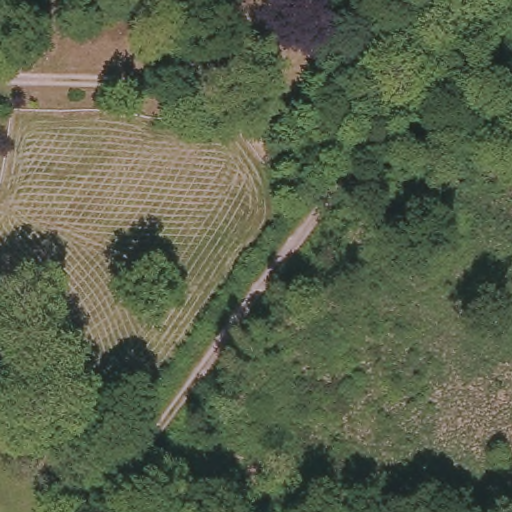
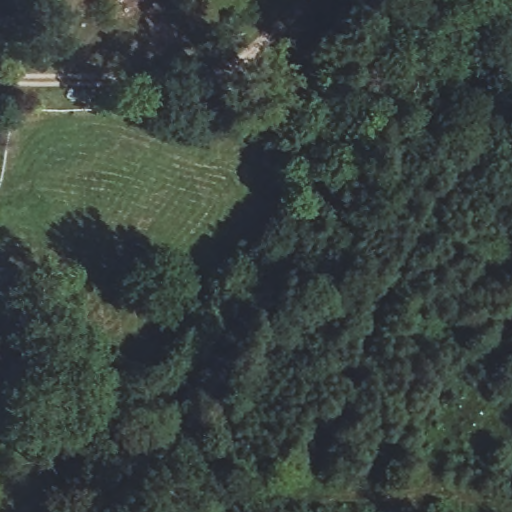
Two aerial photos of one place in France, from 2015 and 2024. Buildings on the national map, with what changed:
[]

